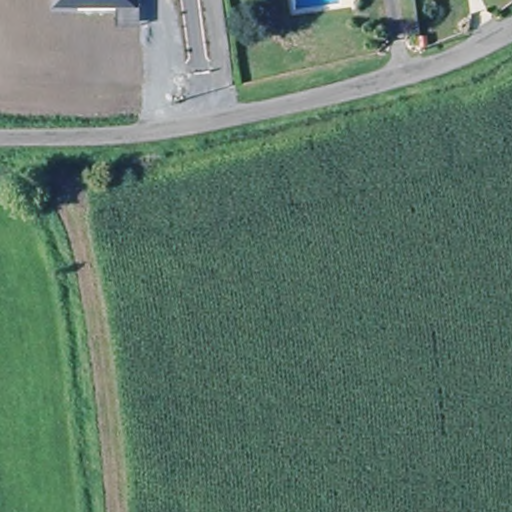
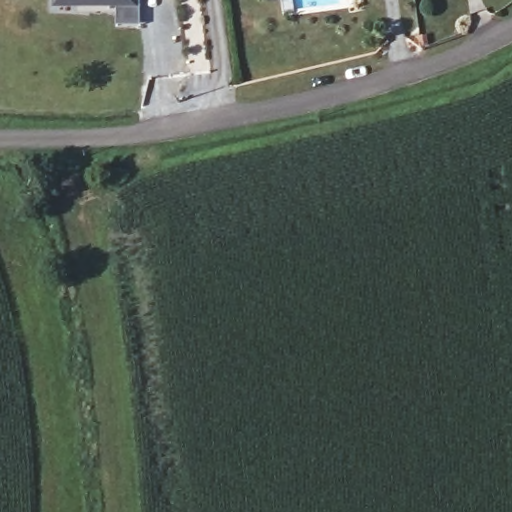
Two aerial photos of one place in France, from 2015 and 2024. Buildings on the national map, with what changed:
unchanged [(140,24),(116,26),(116,7),(54,7),(54,0),(139,0),(140,7),(140,24)]

